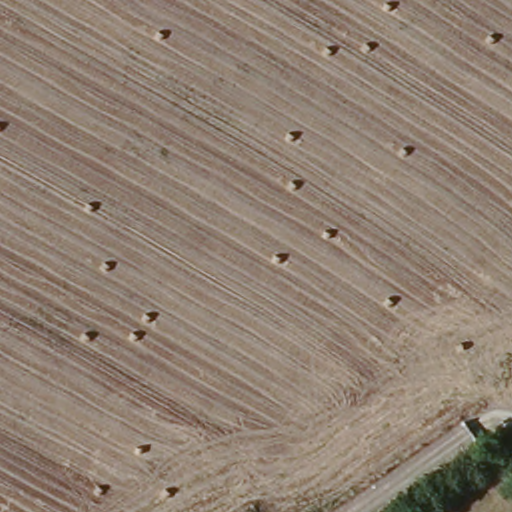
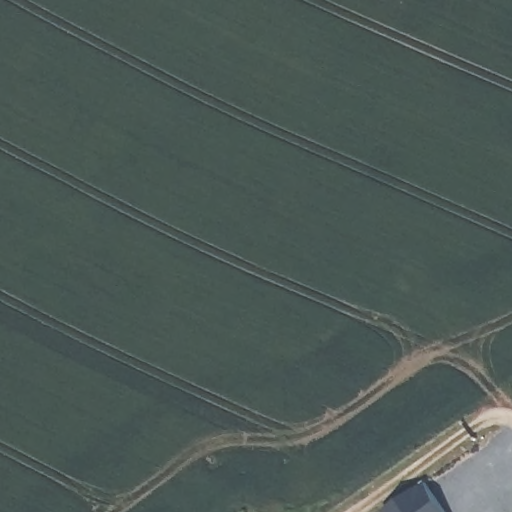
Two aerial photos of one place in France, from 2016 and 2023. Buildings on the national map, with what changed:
new [(447,512),(384,512),(383,511),(425,482),(447,512)]

